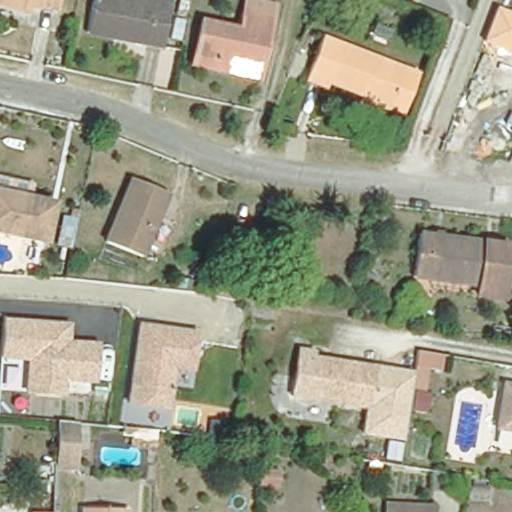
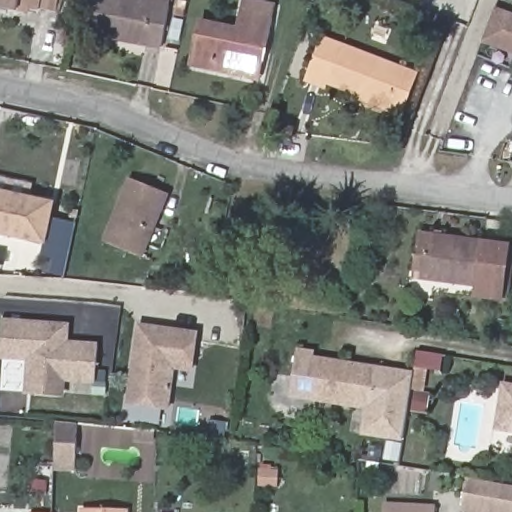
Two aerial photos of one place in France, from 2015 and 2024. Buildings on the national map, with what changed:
unchanged [(40,6),(39,14),(0,6),(0,0),(59,0),(57,10),(40,6)]
unchanged [(89,0),(112,0),(137,5),(138,0),(168,0),(165,10),(157,53),(81,38),(89,0)]
unchanged [(202,20),(237,28),(243,0),(253,0),(275,5),(260,80),(192,66),(202,20)]
unchanged [(180,22),(171,20),(174,5),(183,7),(180,22)]
unchanged [(482,42),(496,8),(512,14),(512,53),(482,42)]
unchanged [(175,45),(166,44),(170,23),(179,25),(175,45)]
unchanged [(403,112),(389,107),(329,84),(327,88),(306,79),(322,38),(404,69),(417,74),(403,112)]
unchanged [(168,192),(142,256),(106,241),(132,178),(168,192)]
unchanged [(45,241),(0,232),(0,192),(53,203),(45,241)]
unchanged [(502,300),(473,296),(475,284),(413,277),(419,234),(509,245),(502,300)]
unchanged [(69,341),(100,343),(97,384),(67,382),(66,397),(24,393),(27,360),(0,359),(0,353),(3,318),(71,323),(69,341)]
unchanged [(200,337),(194,374),(176,370),(169,411),(130,404),(143,327),(200,337)]
unchanged [(378,365),(371,410),(295,399),(302,353),(378,365)]
unchanged [(371,410),(378,365),(413,370),(401,441),(359,435),(364,409),(371,410)]
demolished [(324,420),(303,418),(306,404),(327,406),(324,420)]
unchanged [(512,405),(512,433),(507,432),(512,405)]
unchanged [(76,423),(76,466),(54,466),(55,421),(76,423)]
unchanged [(223,423),(221,437),(208,434),(210,421),(223,423)]
unchanged [(248,466),(233,464),(234,450),(250,451),(248,466)]
unchanged [(275,472),(274,487),(257,486),(257,471),(275,472)]
new [(459,512),(466,477),(512,486),(512,512),(460,512),(459,512)]
unchanged [(386,504),(436,507),(436,512),(386,512),(386,504)]
unchanged [(122,511),(122,512),(78,512),(78,511),(122,511)]

